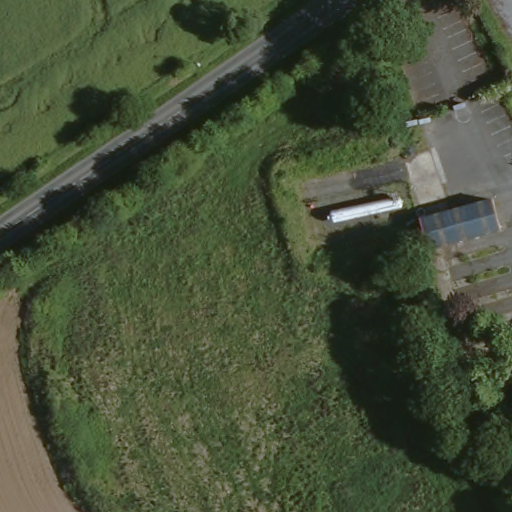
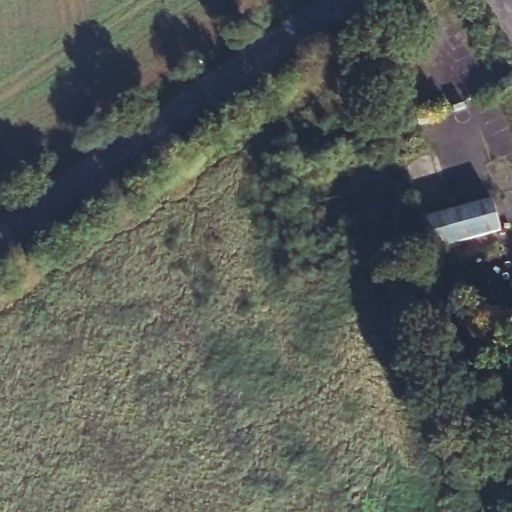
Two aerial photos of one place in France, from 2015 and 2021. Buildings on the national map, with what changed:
unchanged [(484,201),(496,232),(422,260),(411,229),(484,201)]

